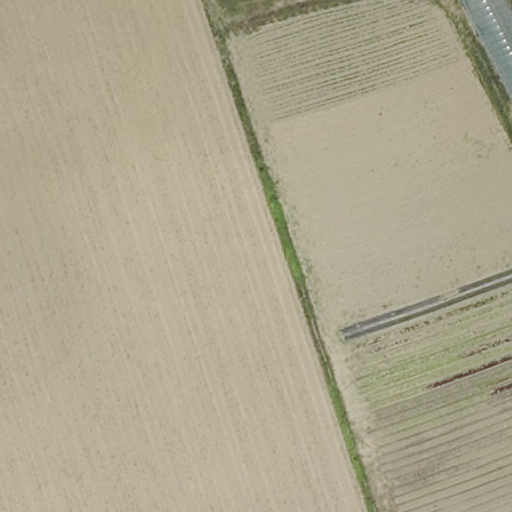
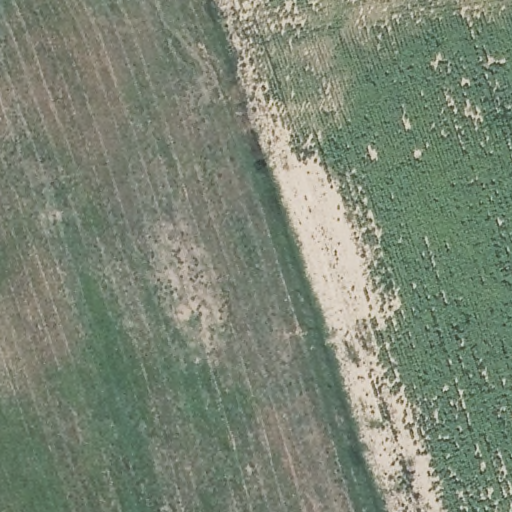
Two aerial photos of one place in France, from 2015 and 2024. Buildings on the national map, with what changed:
demolished [(459,0),(504,0),(512,15),(512,104),(459,0)]

